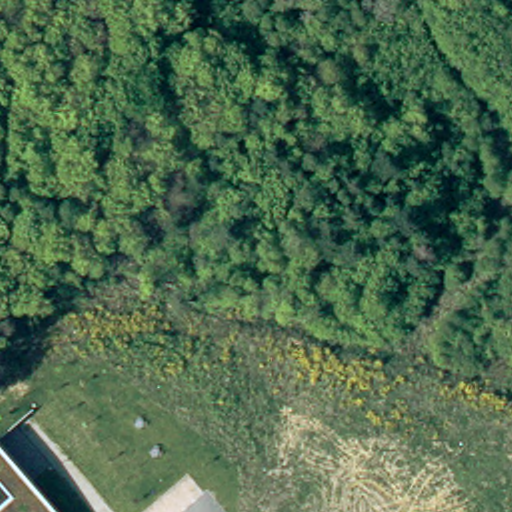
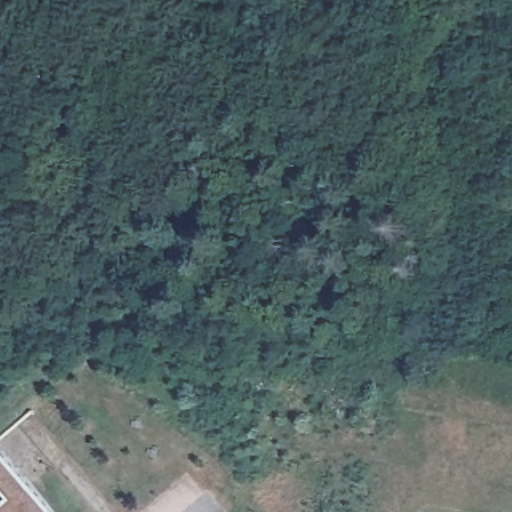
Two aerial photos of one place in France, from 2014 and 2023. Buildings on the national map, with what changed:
unchanged [(0,512),(0,449),(55,512),(0,512)]

